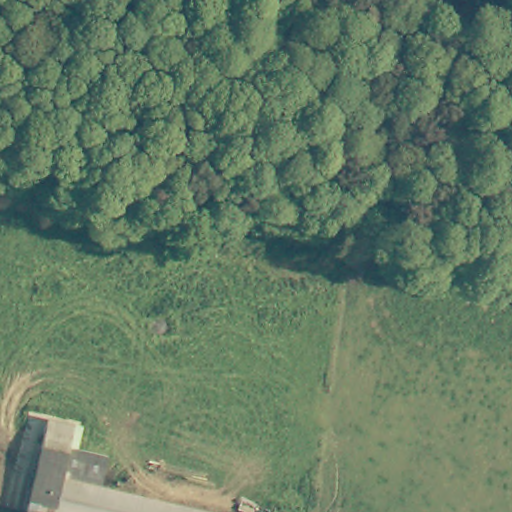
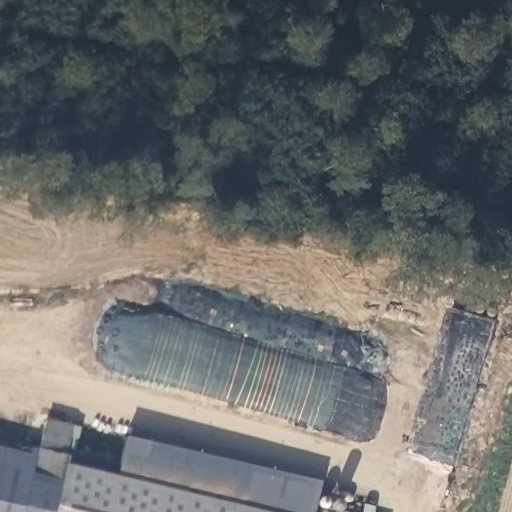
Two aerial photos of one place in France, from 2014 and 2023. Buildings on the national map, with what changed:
new [(34,448),(39,449),(47,419),(81,427),(76,449),(106,456),(101,470),(275,512),(0,512),(0,446),(33,453),(34,448)]
new [(315,512),(275,512),(117,474),(126,434),(322,481),(315,512)]
demolished [(63,458),(65,451),(104,461),(96,492),(179,512),(25,512),(40,453),(63,458)]

